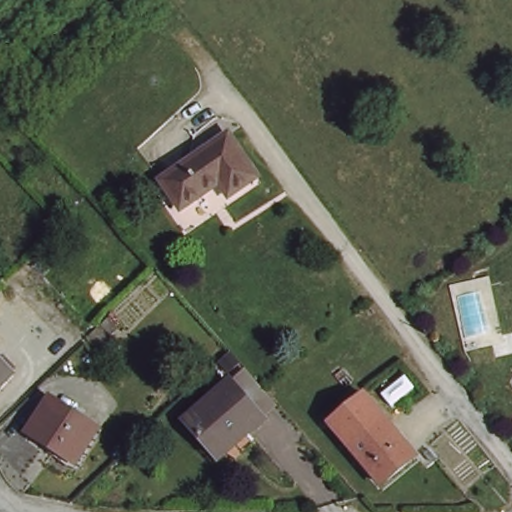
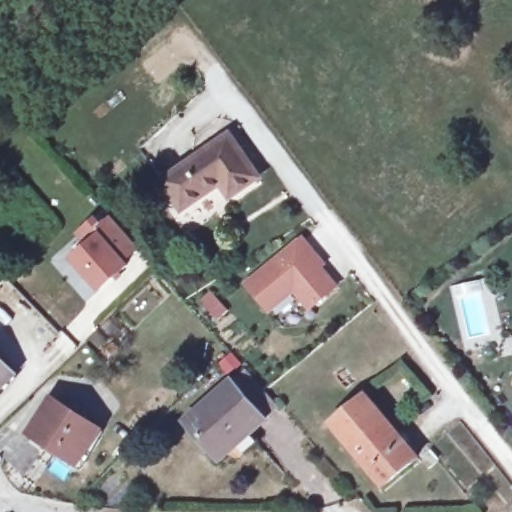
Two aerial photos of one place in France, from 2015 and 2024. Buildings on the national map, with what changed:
unchanged [(255,183),(228,203),(218,189),(179,215),(160,188),(227,142),(255,183)]
new [(86,248),(76,237),(90,223),(98,230),(108,220),(136,249),(120,263),(124,268),(98,292),(71,262),(86,248)]
new [(315,251),(326,264),(323,267),(339,286),(311,309),(296,291),(271,312),(248,284),(304,237),(315,251)]
unchanged [(0,388),(0,365),(12,377),(0,388)]
unchanged [(265,420),(249,435),(243,431),(216,456),(187,425),(232,384),(265,420)]
unchanged [(415,462),(380,491),(326,428),(362,398),(415,462)]
unchanged [(101,432),(77,466),(32,438),(56,404),(101,432)]

